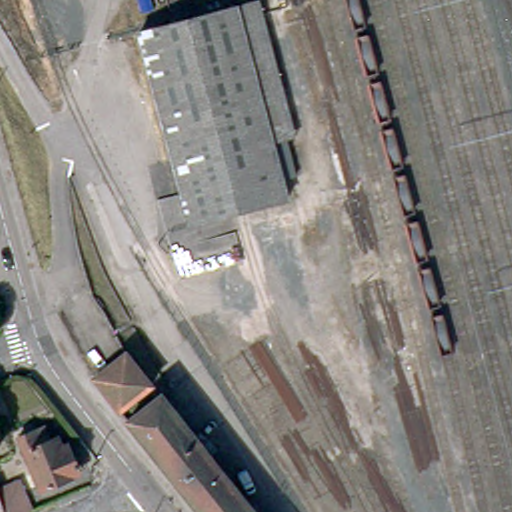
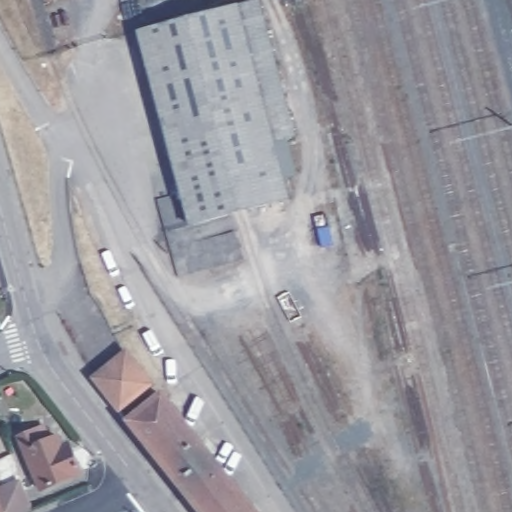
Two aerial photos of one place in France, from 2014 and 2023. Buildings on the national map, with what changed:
unchanged [(191,229),(135,27),(250,0),(290,135),(275,140),(290,197),(191,229)]
unchanged [(125,421),(88,376),(119,345),(155,394),(165,391),(256,512),(200,512),(125,421)]
unchanged [(42,422),(50,436),(58,434),(64,449),(70,447),(77,463),(74,473),(42,486),(18,431),(42,422)]
unchanged [(13,485),(22,504),(3,512),(0,512),(0,491),(13,485)]

